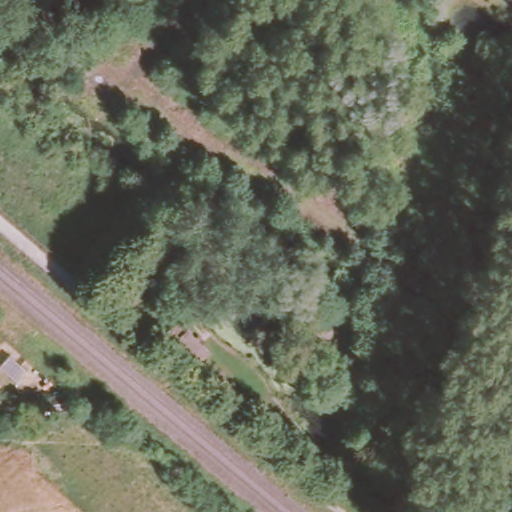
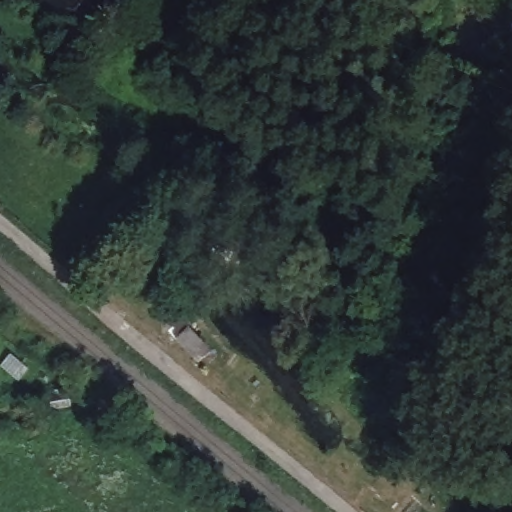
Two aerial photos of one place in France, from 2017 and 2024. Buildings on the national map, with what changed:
unchanged [(503,0),(512,0),(512,13),(511,14),(500,2),(503,0)]
unchanged [(179,318),(210,355),(197,365),(167,328),(179,318)]

